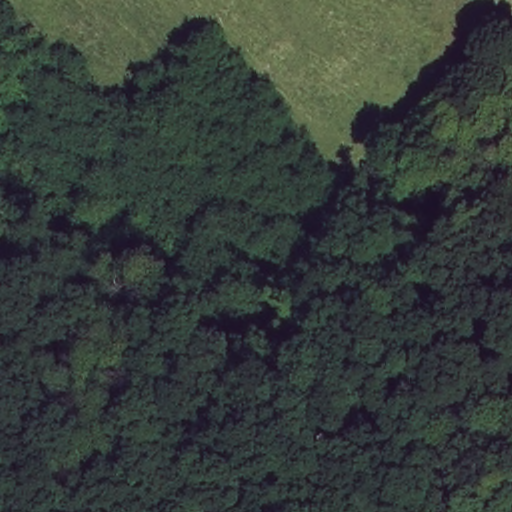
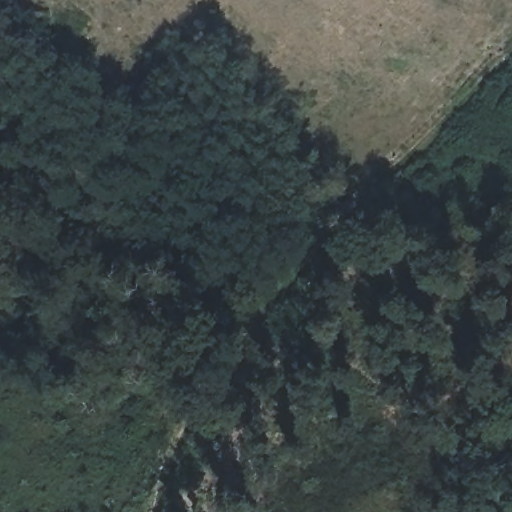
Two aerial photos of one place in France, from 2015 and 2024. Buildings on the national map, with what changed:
[]

